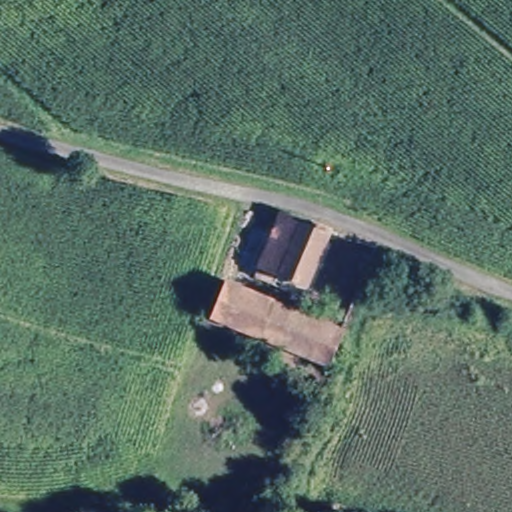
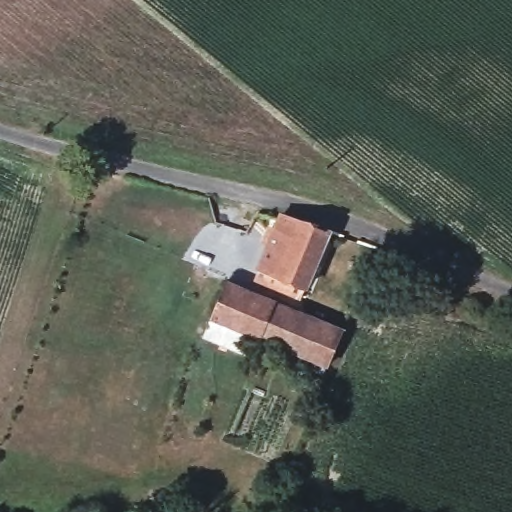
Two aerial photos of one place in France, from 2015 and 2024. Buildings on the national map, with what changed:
unchanged [(327,234),(308,291),(257,274),(277,216),(327,234)]
unchanged [(327,364),(209,315),(222,278),(341,328),(327,364)]

